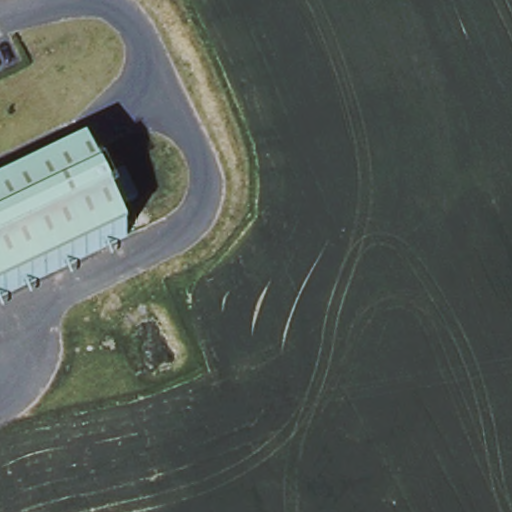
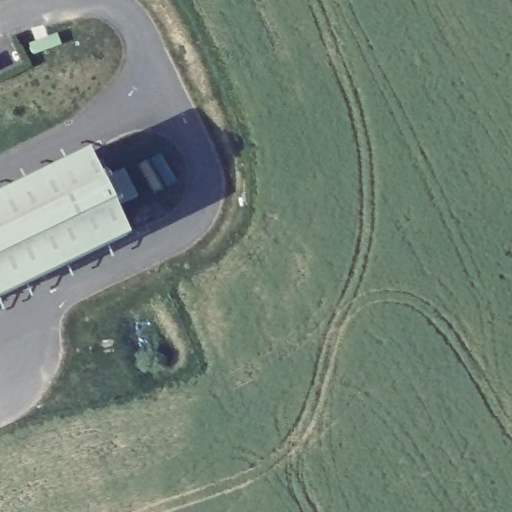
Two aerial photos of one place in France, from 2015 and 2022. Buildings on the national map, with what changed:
unchanged [(101,180),(123,169),(137,196),(115,207),(127,234),(0,296),(0,195),(88,152),(101,180)]

